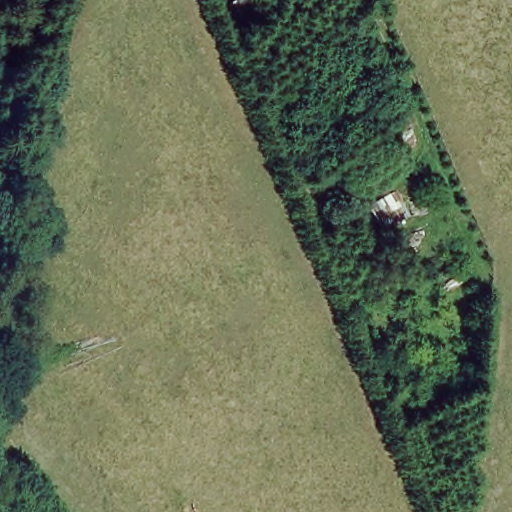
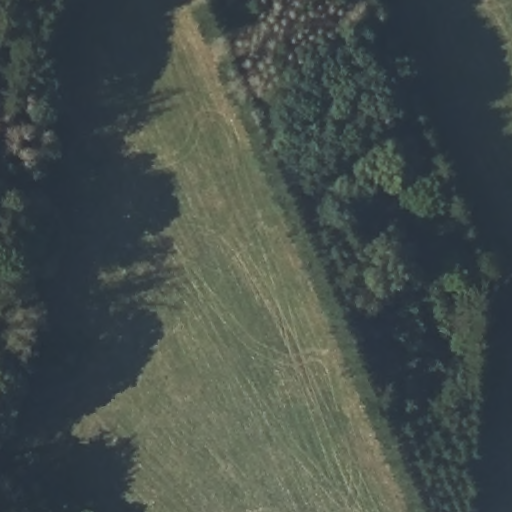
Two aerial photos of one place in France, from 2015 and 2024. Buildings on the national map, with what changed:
unchanged [(394,188),(407,216),(379,232),(364,206),(394,188)]

